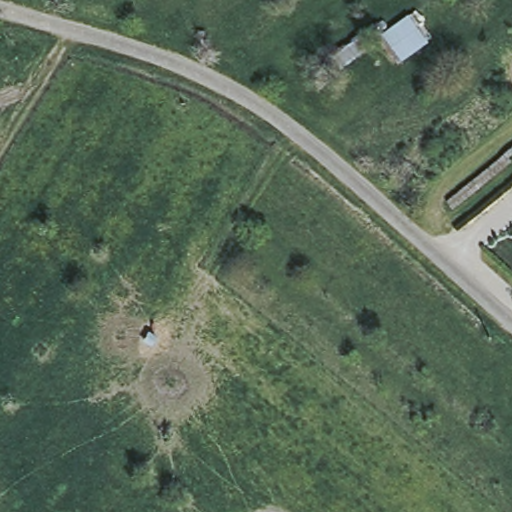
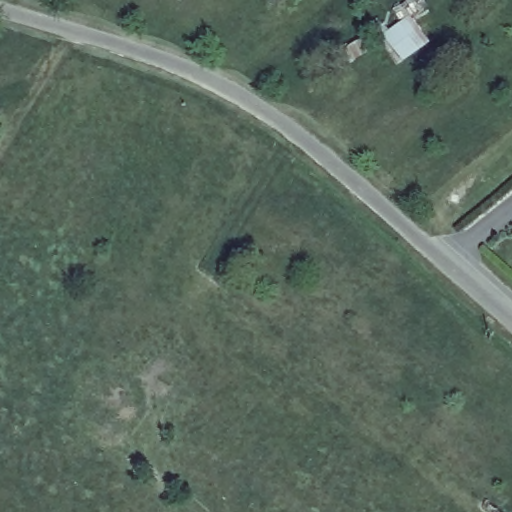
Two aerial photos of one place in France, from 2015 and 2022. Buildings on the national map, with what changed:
unchanged [(432,43),(396,61),(379,32),(412,14),(432,43)]

